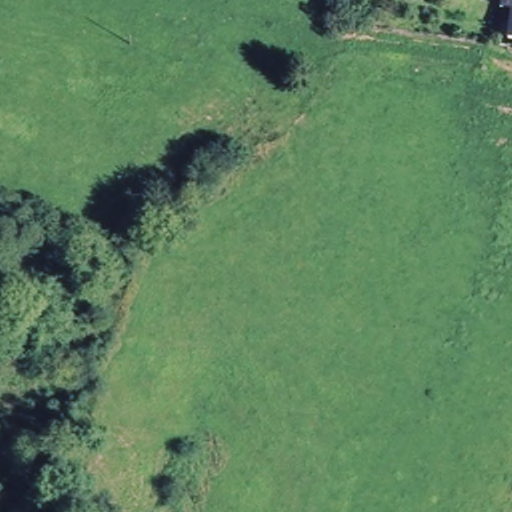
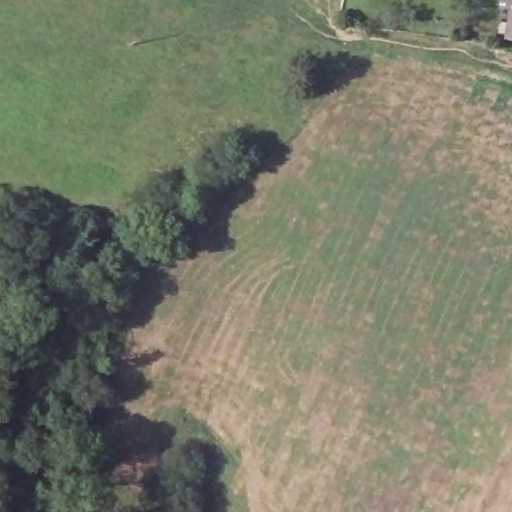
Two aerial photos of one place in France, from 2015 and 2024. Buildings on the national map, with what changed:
unchanged [(508,34),(512,12),(512,35),(508,34)]

